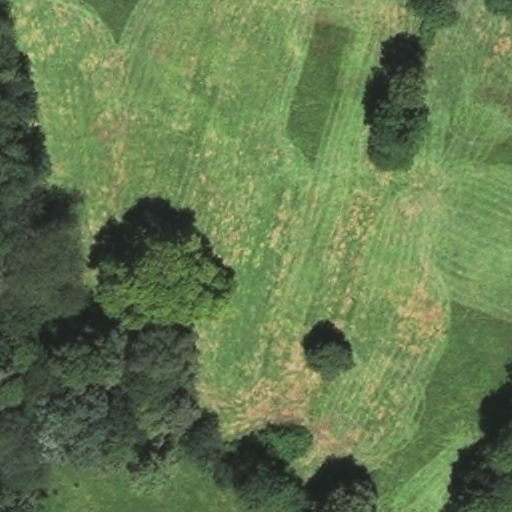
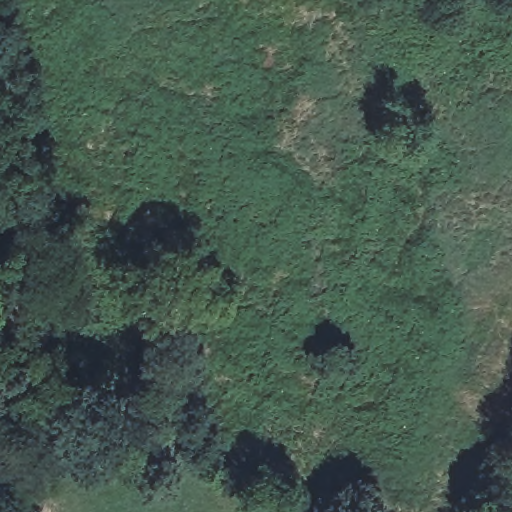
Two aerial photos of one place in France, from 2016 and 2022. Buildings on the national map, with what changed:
[]

